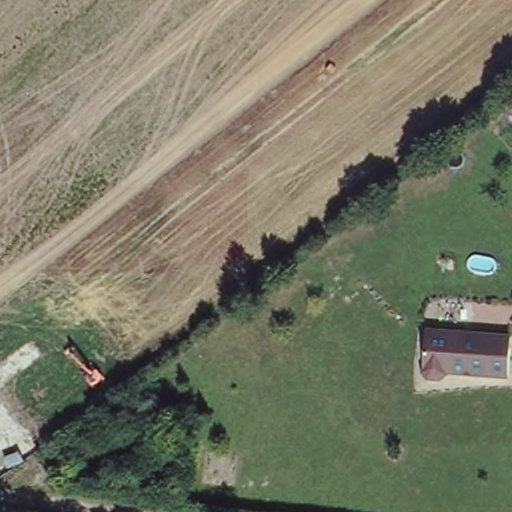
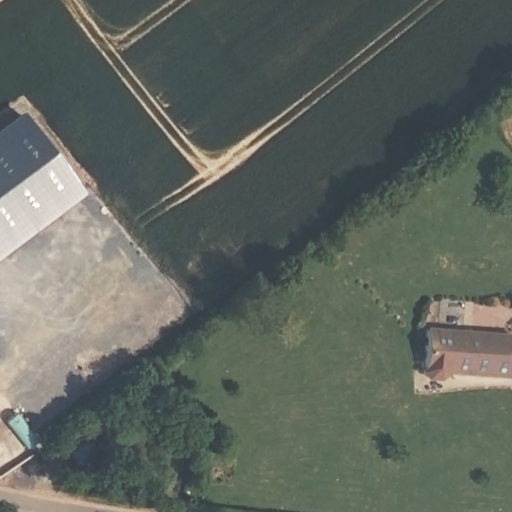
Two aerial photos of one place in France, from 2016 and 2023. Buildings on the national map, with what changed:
new [(16,114),(78,195),(0,253),(0,126),(16,114)]
unchanged [(512,330),(507,380),(420,372),(426,323),(512,330)]

